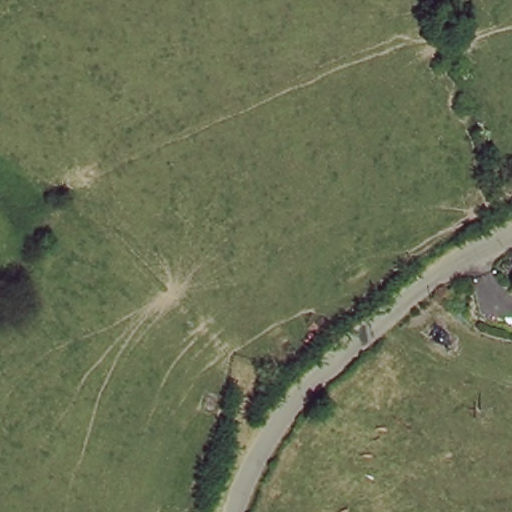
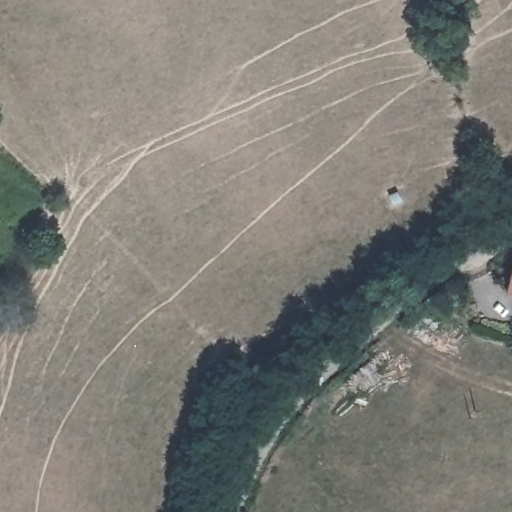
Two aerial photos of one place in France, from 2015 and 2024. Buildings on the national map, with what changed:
unchanged [(512,274),(512,288),(507,286),(512,274)]

